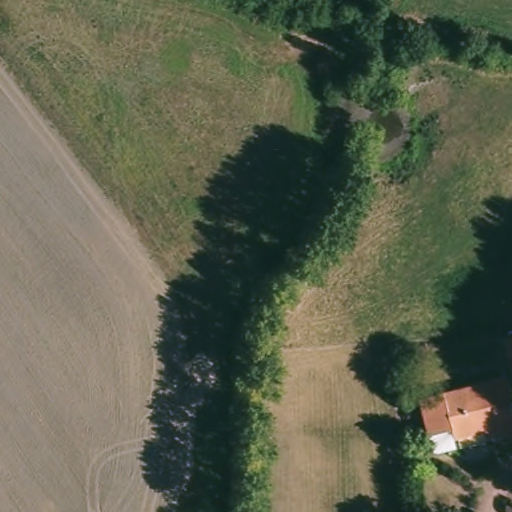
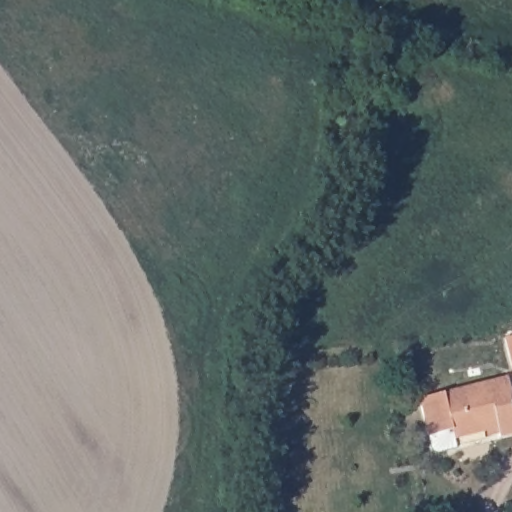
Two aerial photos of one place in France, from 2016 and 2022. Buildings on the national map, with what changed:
unchanged [(512,380),(511,381),(500,343),(512,339),(512,380)]
unchanged [(512,427),(512,437),(491,443),(488,434),(451,443),(454,454),(431,459),(415,404),(500,381),(512,427)]

